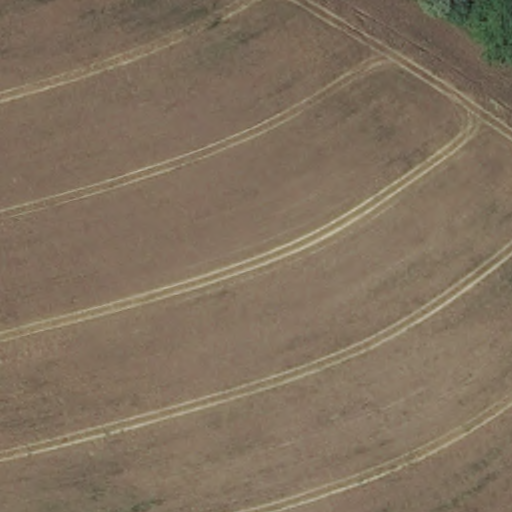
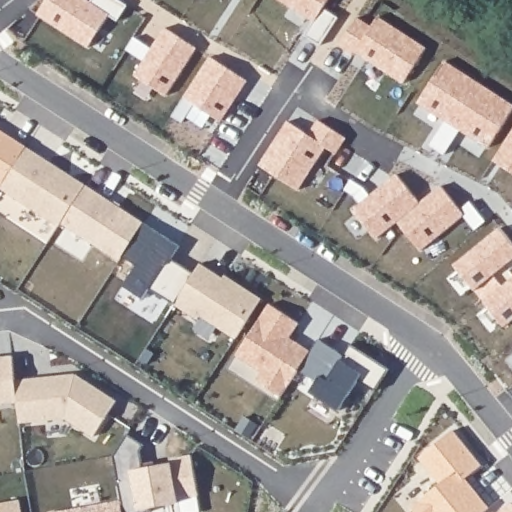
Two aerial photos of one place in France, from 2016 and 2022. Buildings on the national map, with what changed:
new [(87,0),(90,2),(92,0),(119,0),(127,6),(117,21),(109,16),(88,49),(37,15),(47,0),(87,0)]
new [(339,19),(321,46),(305,36),(315,21),(282,0),(330,0),(324,9),(339,19)]
new [(358,18),(372,27),(379,18),(427,49),(405,84),(357,53),(355,55),(340,45),(358,18)]
new [(134,38),(152,49),(166,28),(197,49),(166,96),(135,76),(145,61),(126,50),(134,38)]
new [(211,58),(247,81),(221,122),(194,105),(182,123),(172,116),(211,58)]
new [(446,61),(512,104),(512,114),(489,149),(461,131),(445,155),(431,146),(447,121),(419,103),(446,61)]
new [(288,123),(309,136),(319,121),(346,139),(336,155),(326,148),(298,191),(260,166),(288,123)]
new [(26,147),(1,187),(0,186),(0,129),(12,138),(26,147)]
new [(512,131),(512,174),(492,161),(512,131)]
new [(1,187),(26,147),(85,185),(61,223),(59,226),(0,189),(1,187)]
new [(353,180),(365,187),(371,195),(398,174),(421,202),(442,185),(462,209),(471,202),(486,221),(476,230),(465,215),(421,250),(398,221),(376,238),(353,210),(361,204),(355,195),(346,189),(353,180)]
new [(85,185),(144,223),(122,256),(120,261),(61,223),(85,185)]
new [(144,223),(180,246),(172,259),(195,274),(175,305),(150,289),(143,299),(124,286),(137,266),(122,256),(144,223)]
new [(195,274),(201,264),(224,279),(226,276),(261,299),(236,339),(200,316),(198,320),(175,305),(195,274)]
new [(300,323),(290,338),(296,342),(311,352),(299,370),(281,397),(257,382),(263,373),(237,356),(270,304),(300,323)]
new [(311,352),(319,339),(344,356),(351,345),(390,370),(375,392),(359,381),(340,411),(310,392),(317,382),(299,370),(311,352)]
new [(15,380),(17,402),(0,404),(0,357),(13,356),(15,380)]
new [(65,375),(76,374),(117,401),(94,437),(65,419),(20,424),(17,402),(15,380),(51,377),(65,375)]
new [(413,506),(441,483),(419,456),(453,428),(482,465),(466,479),(490,507),(483,512),(418,512),(413,506)]
new [(141,436),(146,467),(170,463),(169,459),(192,455),(200,496),(130,512),(124,512),(121,501),(115,454),(131,431),(141,436)]
new [(22,512),(0,512),(0,504),(20,500),(22,512)]
new [(121,501),(123,512),(59,512),(121,501)]
new [(512,503),(512,512),(500,512),(512,503)]

